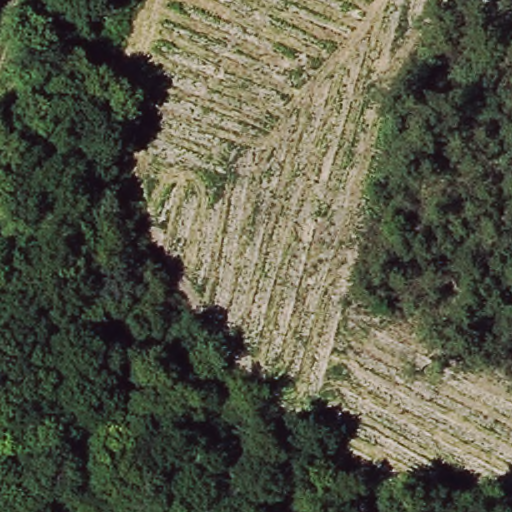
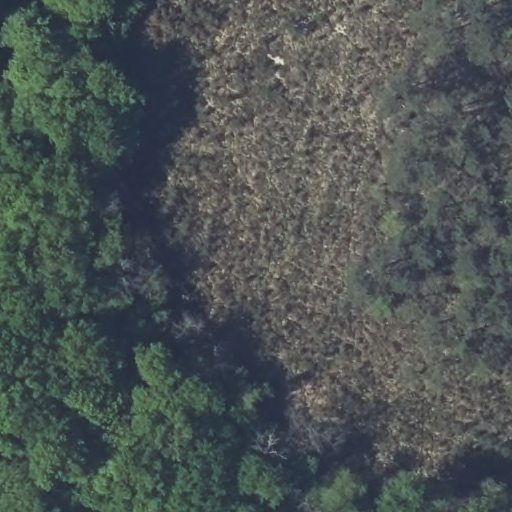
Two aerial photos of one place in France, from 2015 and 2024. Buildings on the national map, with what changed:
[]

